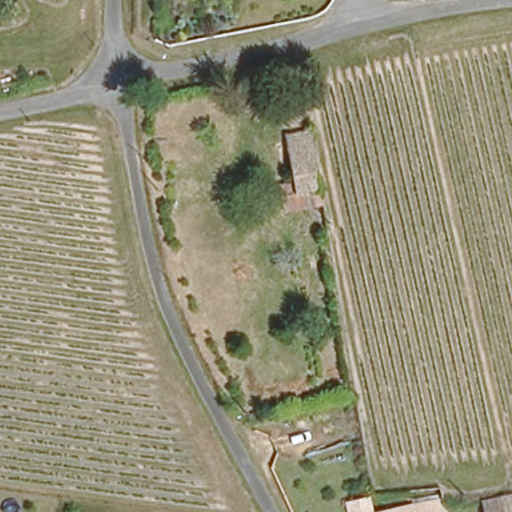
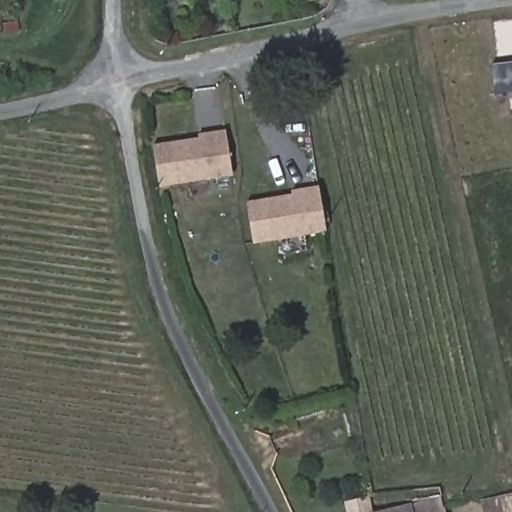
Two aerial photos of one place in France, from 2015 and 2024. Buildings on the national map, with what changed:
new [(494,95),(492,65),(512,62),(512,94),(494,95)]
new [(160,187),(154,144),(199,138),(198,134),(225,130),(233,177),(160,187)]
demolished [(325,204),(296,208),(285,145),(313,140),(325,204)]
new [(253,245),(246,202),(291,195),(290,191),(319,187),(326,233),(253,245)]
unchanged [(485,502),(512,497),(512,512),(487,512),(485,502)]
unchanged [(408,504),(410,511),(443,507),(444,512),(378,512),(408,504)]

